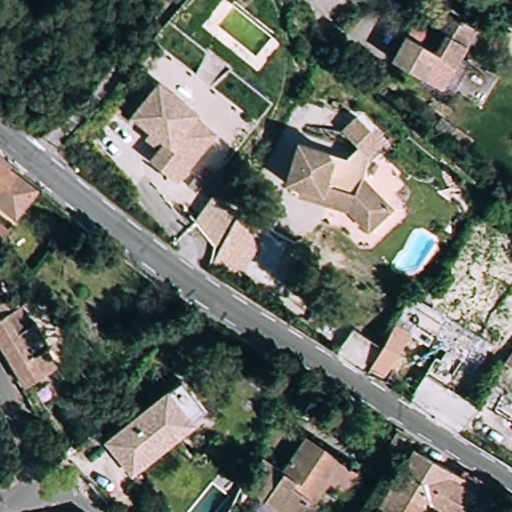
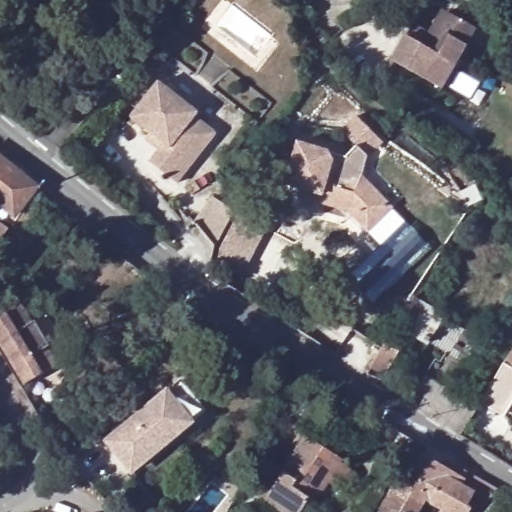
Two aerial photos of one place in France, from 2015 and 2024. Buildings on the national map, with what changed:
unchanged [(457,84),(446,78),(443,84),(393,56),(413,21),(425,29),(419,40),(424,43),(444,10),(475,26),(460,53),(472,59),(457,84)]
unchanged [(131,116),(158,81),(197,113),(194,116),(206,126),(215,133),(208,143),(176,183),(149,161),(159,149),(145,138),(150,131),(131,116)]
unchanged [(300,188),(286,184),(299,143),(346,158),(357,146),(342,131),(357,116),(383,143),(368,157),(363,177),(392,208),(368,231),(349,211),(326,205),(298,196),(300,188)]
unchanged [(468,140),(461,150),(449,141),(456,131),(468,140)]
unchanged [(37,188),(16,216),(0,203),(0,158),(37,188)]
unchanged [(238,215),(264,229),(239,275),(213,260),(238,215)]
unchanged [(10,230),(0,243),(0,224),(1,223),(10,230)]
unchanged [(464,327),(447,354),(412,333),(386,375),(371,368),(412,297),(428,306),(431,300),(447,310),(444,315),(464,327)]
unchanged [(11,348),(0,330),(0,315),(26,300),(37,319),(41,316),(56,341),(52,344),(63,361),(30,381),(11,348)]
unchanged [(512,346),(512,362),(505,358),(512,346)]
unchanged [(129,482),(98,447),(116,432),(188,369),(213,398),(141,461),(147,467),(129,482)]
unchanged [(467,414),(453,403),(459,395),(473,406),(467,414)]
unchanged [(399,464),(383,455),(397,431),(413,440),(399,464)]
unchanged [(319,497),(315,495),(303,512),(296,512),(246,479),(257,475),(267,454),(288,468),(311,434),(346,456),(346,457),(362,469),(349,488),(333,477),(319,497)]
unchanged [(475,494),(468,506),(473,508),(470,512),(441,512),(442,511),(427,501),(420,512),(376,512),(414,449),(467,480),(463,486),(475,494)]

